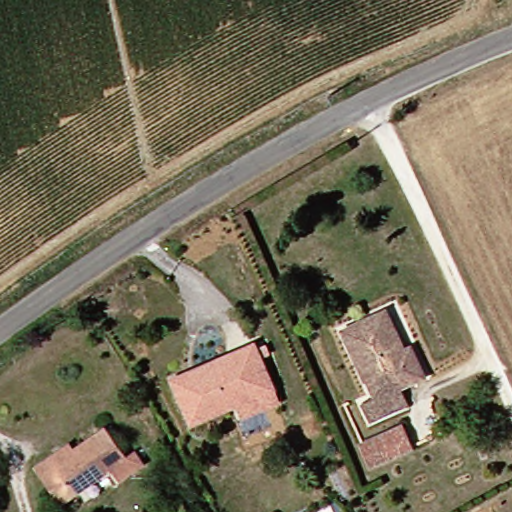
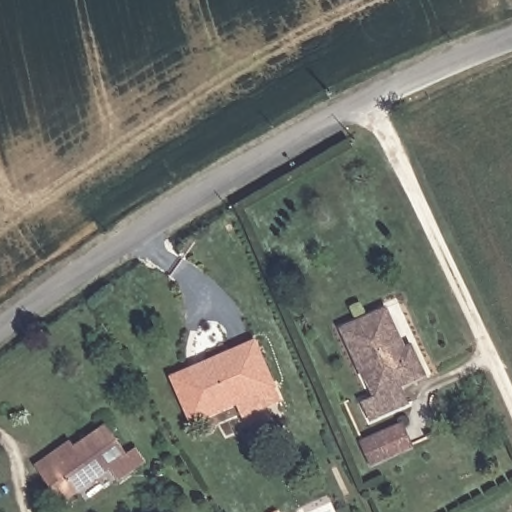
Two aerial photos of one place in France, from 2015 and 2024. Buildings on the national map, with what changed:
unchanged [(337,335),(383,315),(396,345),(407,340),(423,377),(395,389),(404,411),(363,428),(355,407),(375,398),(368,382),(360,386),(337,335)]
unchanged [(277,404),(236,422),(230,407),(187,424),(165,378),(185,369),(230,351),(251,342),(277,404)]
unchanged [(126,457),(132,452),(145,469),(115,492),(101,473),(57,506),(30,470),(66,444),(74,452),(106,430),(126,457)]
unchanged [(358,449),(397,432),(406,450),(366,469),(358,449)]

